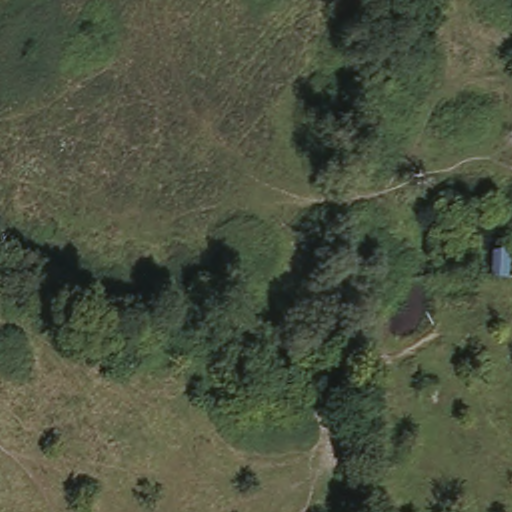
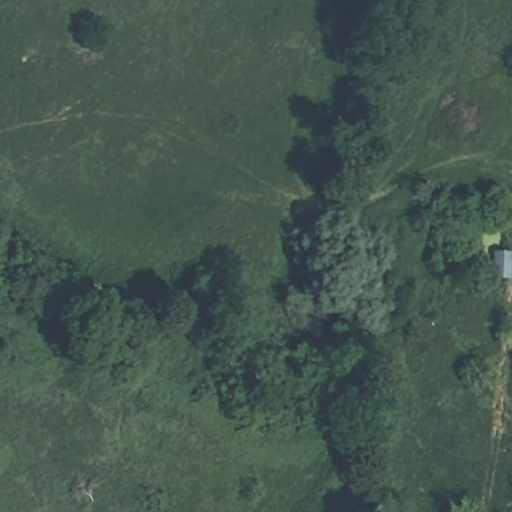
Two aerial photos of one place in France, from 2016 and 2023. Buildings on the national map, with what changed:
unchanged [(490,278),(492,256),(508,259),(505,281),(490,278)]

